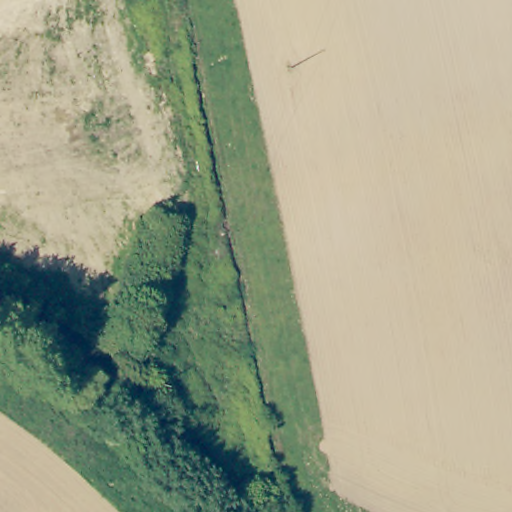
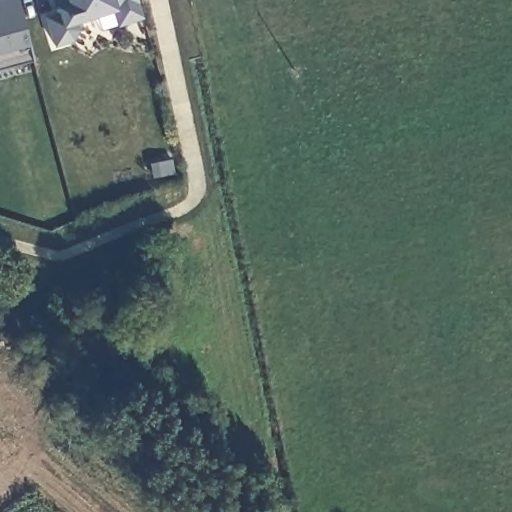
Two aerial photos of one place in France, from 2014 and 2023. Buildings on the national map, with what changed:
new [(0,0),(14,0),(26,45),(30,60),(0,67),(0,0)]
new [(141,17),(116,26),(111,11),(75,22),(76,29),(70,40),(52,45),(44,15),(55,11),(51,0),(136,0),(141,17)]

